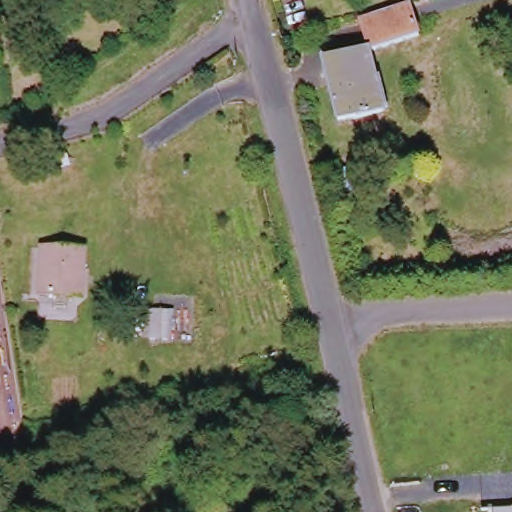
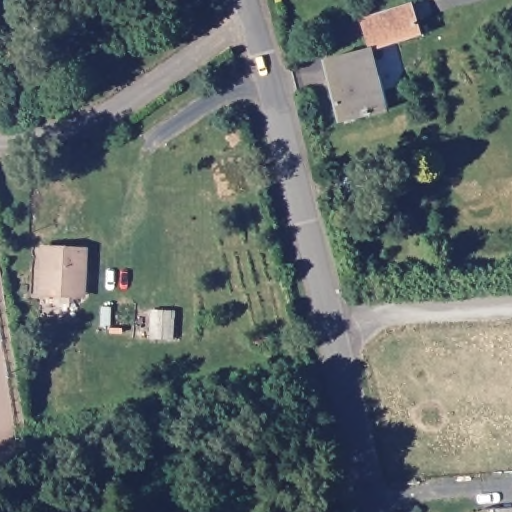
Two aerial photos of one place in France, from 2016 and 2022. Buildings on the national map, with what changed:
unchanged [(366,15),(395,10),(412,7),(418,40),(401,43),(371,48),(366,15)]
unchanged [(340,120),(325,60),(369,49),(370,51),(385,109),(345,119),(340,120)]
unchanged [(43,294),(47,247),(87,250),(82,296),(43,294)]
unchanged [(493,511),(512,510),(512,512),(493,512),(493,511)]

